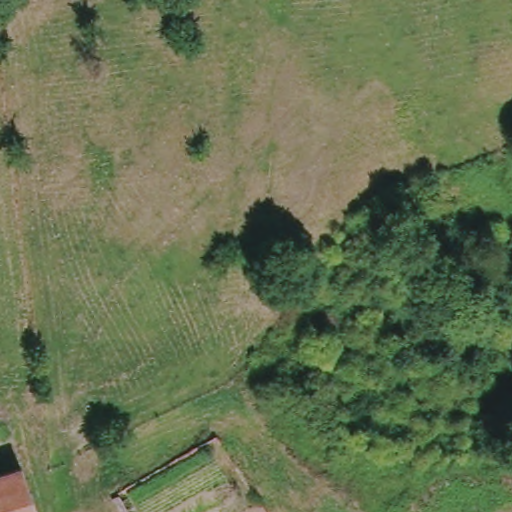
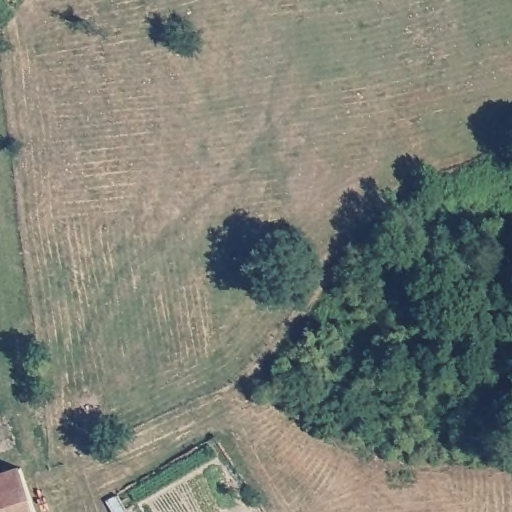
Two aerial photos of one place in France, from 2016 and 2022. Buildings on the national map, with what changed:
unchanged [(0,512),(0,471),(15,466),(34,512),(0,512)]

